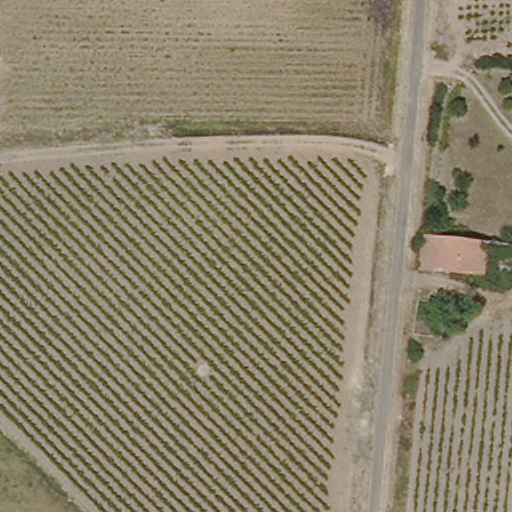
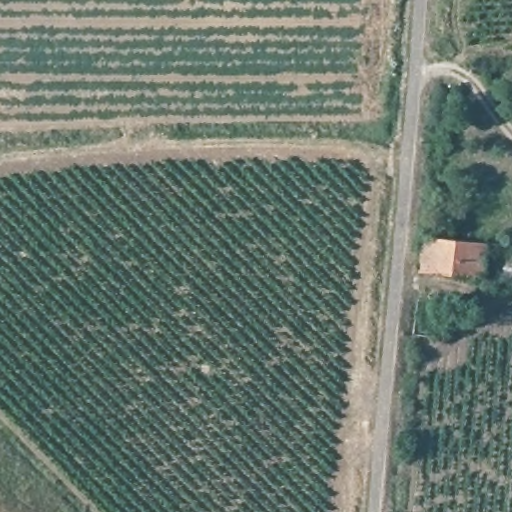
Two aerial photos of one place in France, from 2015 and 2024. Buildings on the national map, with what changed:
unchanged [(510,240),(506,284),(492,283),(493,276),(411,271),(415,233),(510,240)]

